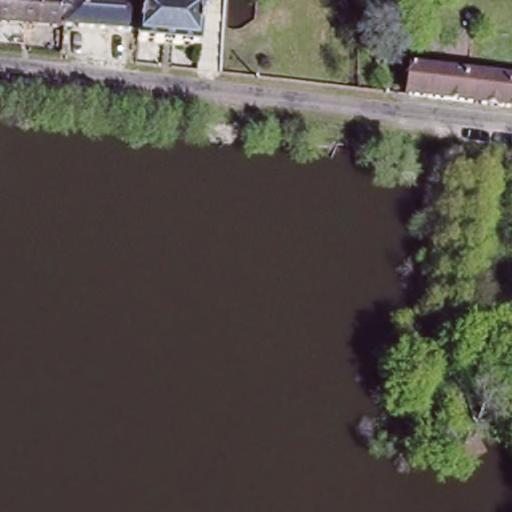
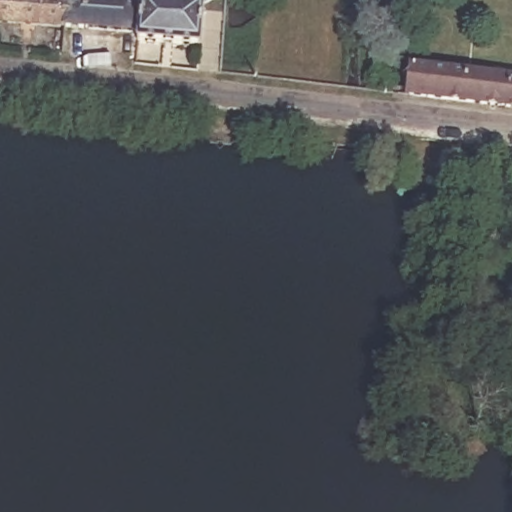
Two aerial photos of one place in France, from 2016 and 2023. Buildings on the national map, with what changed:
unchanged [(67,34),(0,27),(0,0),(70,0),(67,34)]
unchanged [(91,2),(210,12),(206,54),(139,47),(140,40),(67,34),(70,0),(91,2)]
unchanged [(412,64),(512,77),(512,104),(408,92),(412,64)]
unchanged [(464,437),(454,418),(479,405),(489,423),(464,437)]

